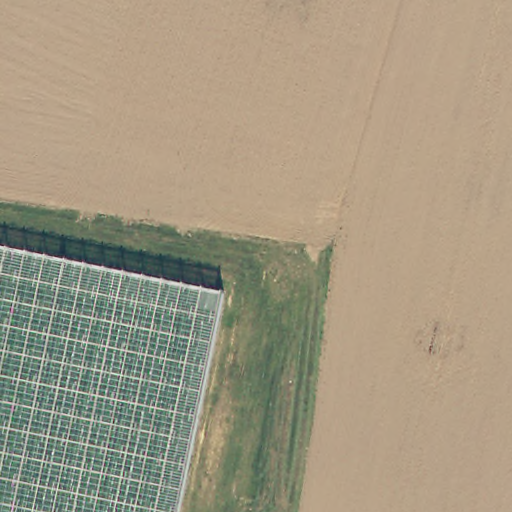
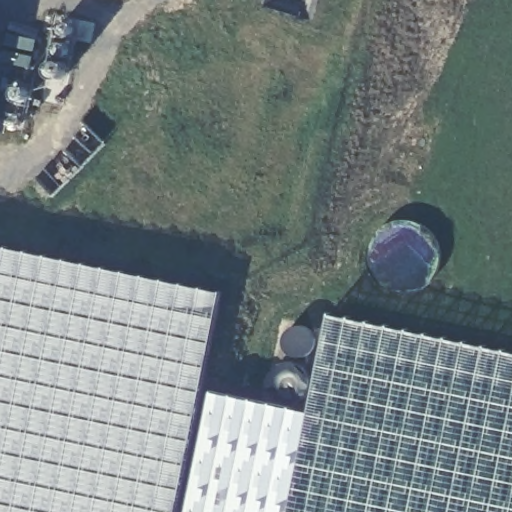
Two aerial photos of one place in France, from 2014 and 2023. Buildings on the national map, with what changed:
new [(68,66),(66,74),(64,78),(58,79),(51,77),(49,75),(48,72),(48,67),(58,22),(61,19),(64,19),(68,19),(71,21),(74,25),(68,66)]
new [(14,85),(18,84),(20,84),(23,85),(25,86),(28,92),(28,97),(21,103),(13,102),(10,100),(13,89),(14,85)]
unchanged [(179,512),(0,512),(0,247),(228,293),(179,512)]
new [(213,392),(311,412),(332,313),(512,351),(512,512),(188,512),(213,392)]

